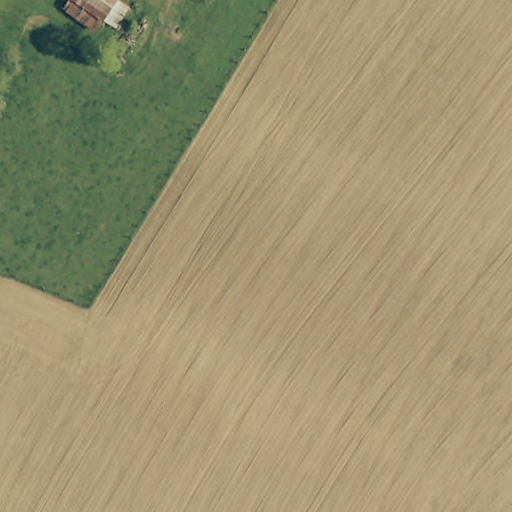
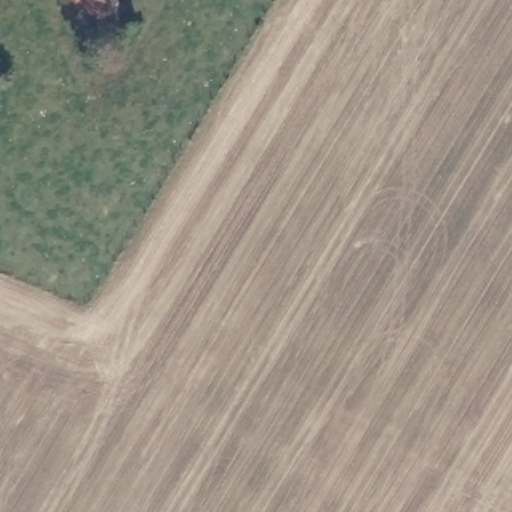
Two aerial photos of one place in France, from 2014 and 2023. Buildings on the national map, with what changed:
unchanged [(76,0),(124,0),(126,1),(114,22),(76,0)]

